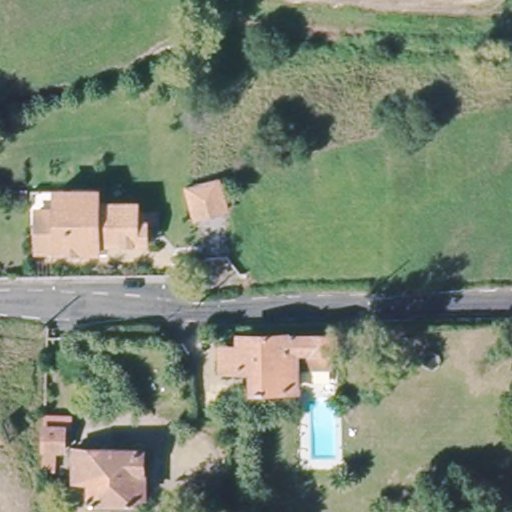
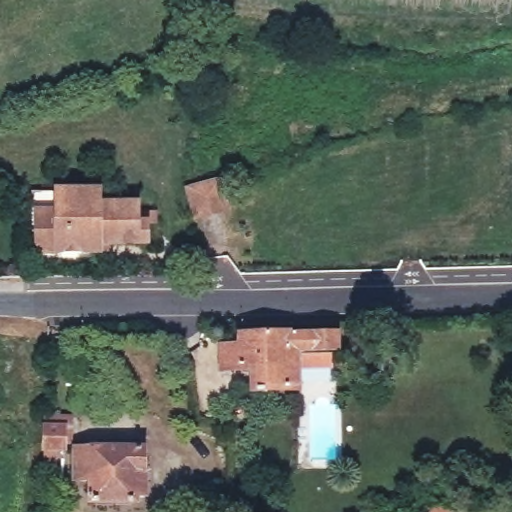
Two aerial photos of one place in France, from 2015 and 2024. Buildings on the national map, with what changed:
unchanged [(219,181),(227,212),(195,221),(187,190),(219,181)]
unchanged [(56,245),(36,245),(36,233),(37,204),(37,185),(57,185),(99,185),(99,199),(137,199),(137,208),(140,208),(140,210),(154,210),(154,219),(146,219),(146,222),(145,222),(145,238),(106,238),(106,246),(98,246),(56,245)]
unchanged [(341,335),(341,354),(303,355),(304,392),(264,393),(263,372),(231,372),(230,350),(244,350),(244,337),(341,335)]
unchanged [(56,421),(56,428),(69,428),(69,445),(64,445),(64,451),(52,452),(51,472),(42,472),(44,421),(56,421)]
unchanged [(72,451),(141,449),(144,497),(134,498),(134,502),(89,505),(89,482),(72,482),(72,451)]

